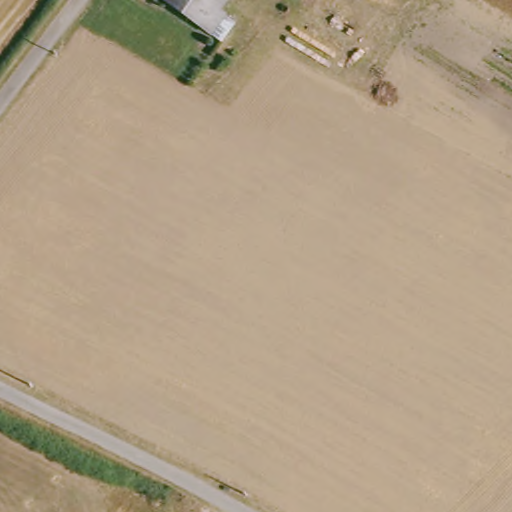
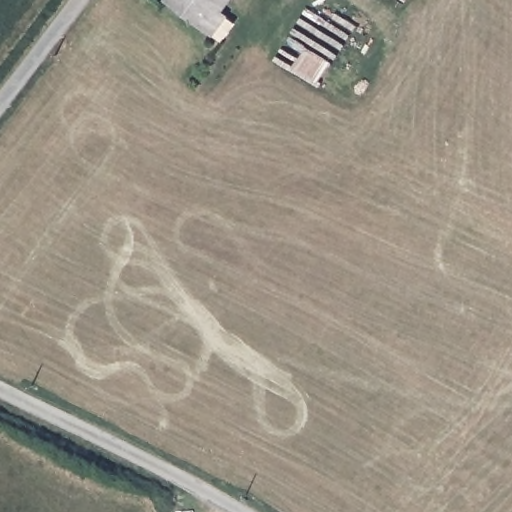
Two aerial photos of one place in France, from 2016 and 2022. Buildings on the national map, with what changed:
unchanged [(216,14),(203,30),(161,0),(218,0),(211,10),(216,14)]

